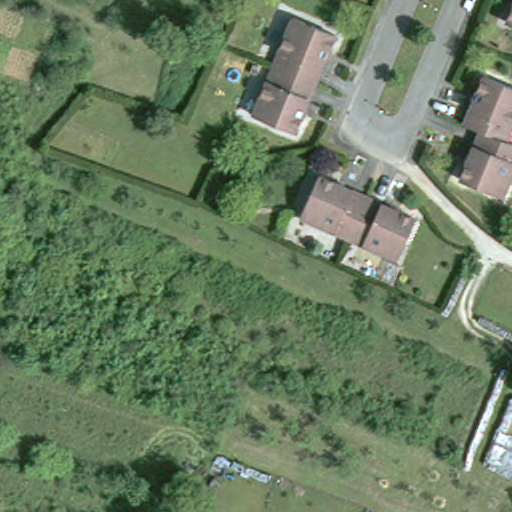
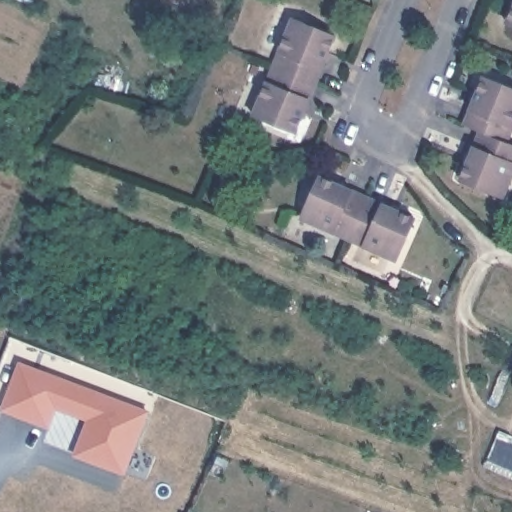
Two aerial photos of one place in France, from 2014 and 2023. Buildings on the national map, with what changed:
unchanged [(509,22),(512,16),(512,23),(509,22)]
unchanged [(338,35),(298,132),(256,114),(296,17),(338,35)]
unchanged [(512,86),(512,133),(509,141),(512,142),(512,178),(504,197),(462,180),(482,131),(467,124),(487,76),(512,86)]
unchanged [(418,219),(399,260),(304,216),(322,175),(418,219)]
new [(74,454),(87,421),(57,410),(49,428),(1,409),(20,360),(150,412),(125,475),(74,454)]

